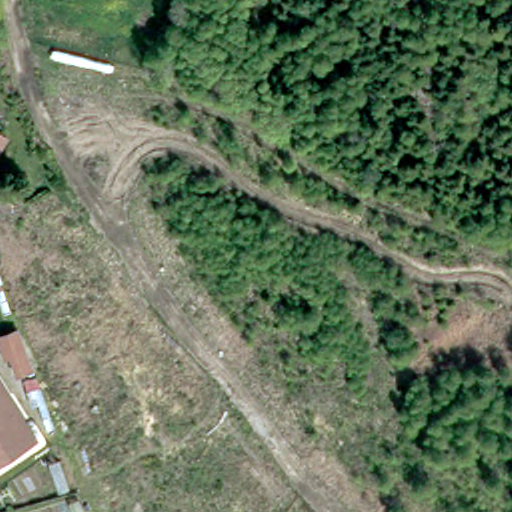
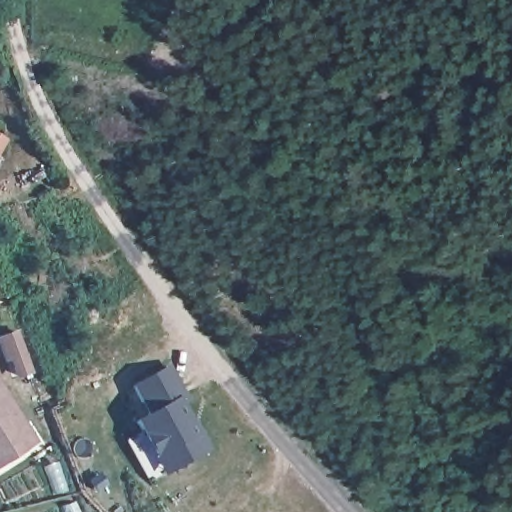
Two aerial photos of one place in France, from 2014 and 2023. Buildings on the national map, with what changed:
new [(0,148),(0,135),(6,139),(0,148)]
unchanged [(23,387),(15,368),(11,370),(3,352),(22,343),(36,381),(23,387)]
new [(183,403),(199,432),(209,448),(163,475),(154,456),(134,418),(146,412),(131,385),(170,363),(189,400),(183,403)]
unchanged [(0,377),(33,445),(0,460),(0,377)]

